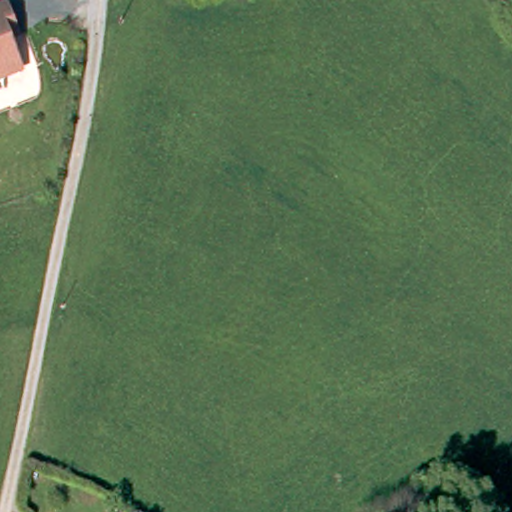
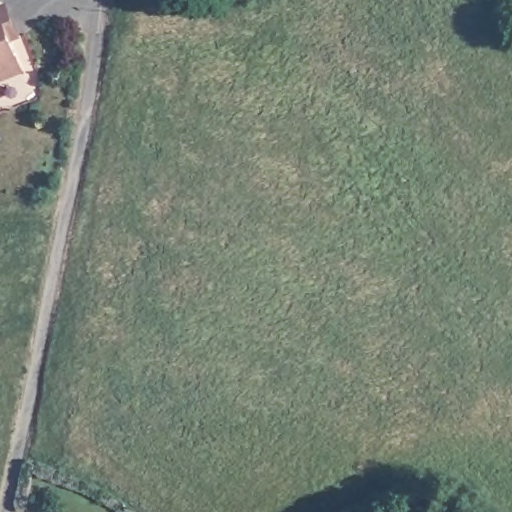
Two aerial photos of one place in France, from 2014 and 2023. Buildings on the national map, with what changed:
unchanged [(0,70),(0,3),(7,0),(15,18),(18,28),(12,31),(23,60),(0,70)]

